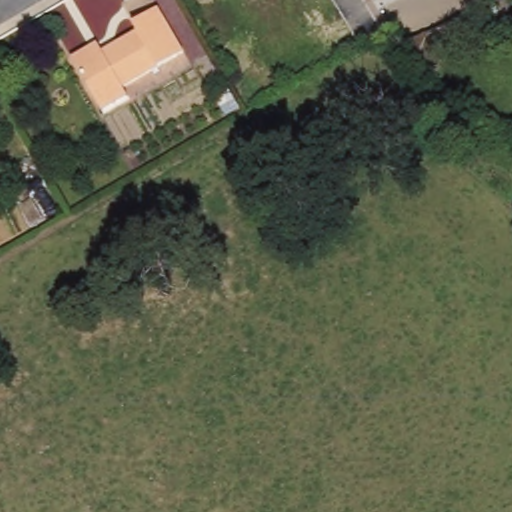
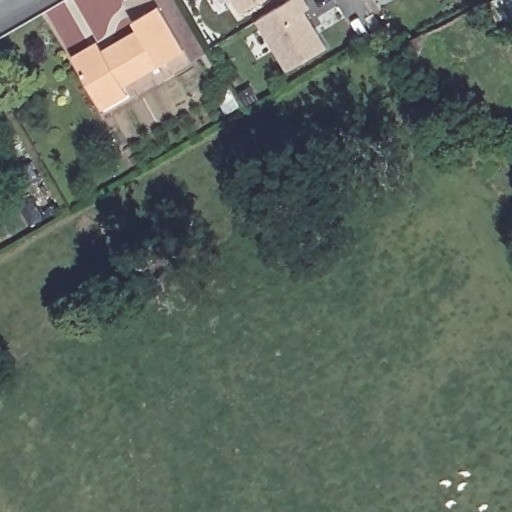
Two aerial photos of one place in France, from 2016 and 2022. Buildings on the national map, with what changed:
new [(232,0),(262,0),(240,14),(232,0)]
new [(305,0),(310,8),(305,11),(327,47),(287,71),(256,21),(290,0),(305,0)]
unchanged [(132,21),(157,7),(183,51),(122,87),(127,95),(102,110),(71,57),(90,46),(97,42),(102,50),(137,30),(132,21)]
unchanged [(405,52),(401,45),(415,38),(428,31),(428,32),(415,69),(405,52)]

